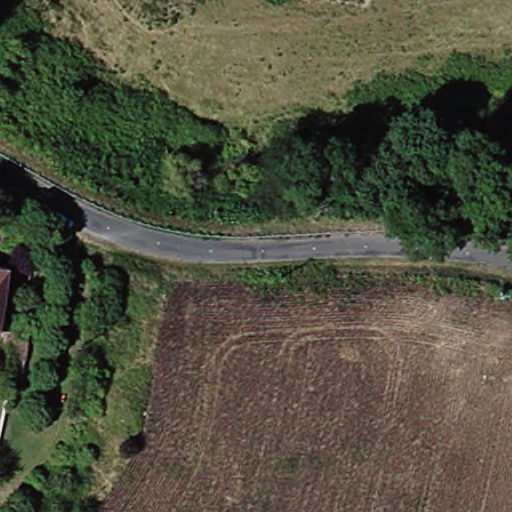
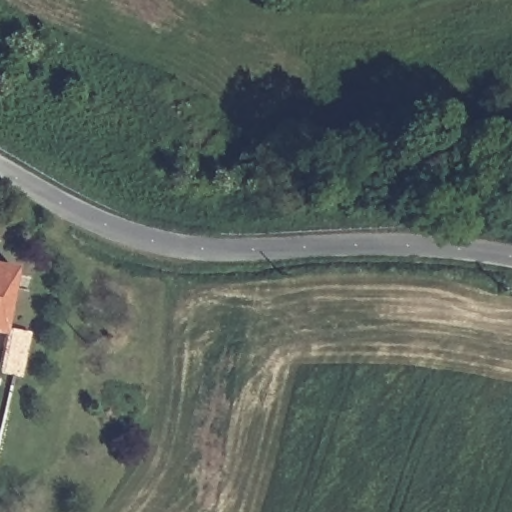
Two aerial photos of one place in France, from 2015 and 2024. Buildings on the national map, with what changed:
unchanged [(0,313),(0,267),(4,267),(0,313)]
unchanged [(26,359),(2,357),(6,326),(30,329),(26,359)]

